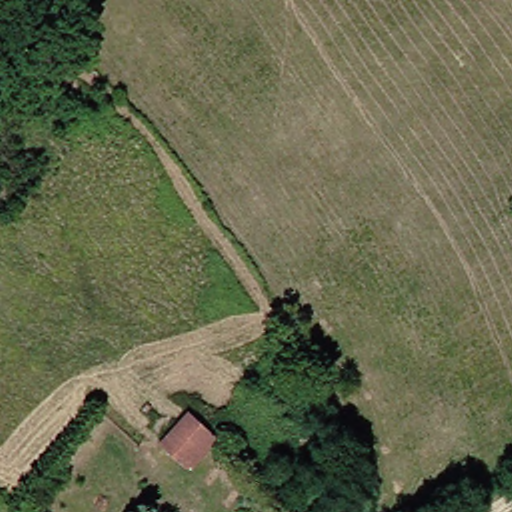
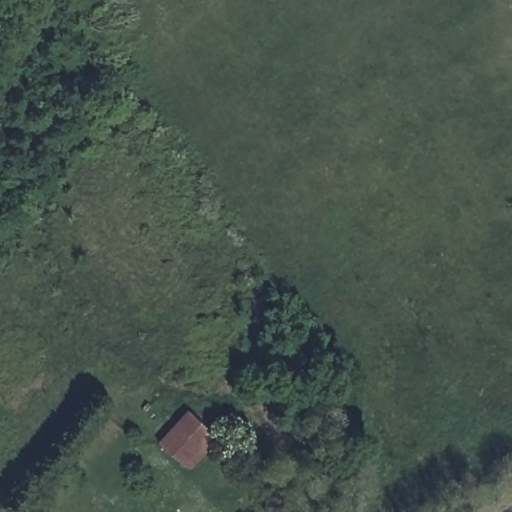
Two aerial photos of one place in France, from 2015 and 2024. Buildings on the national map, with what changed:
unchanged [(202,416),(212,423),(224,435),(194,468),(171,450),(202,416)]

